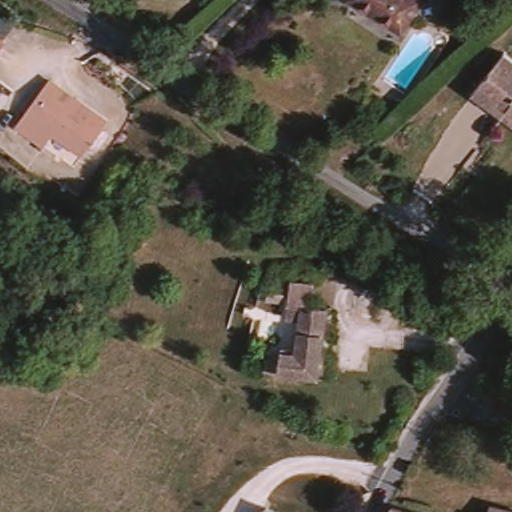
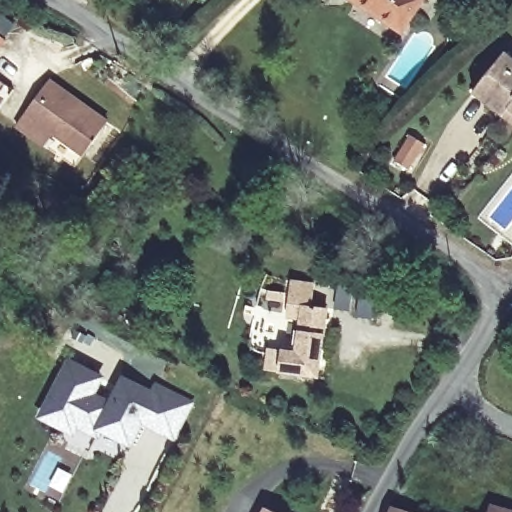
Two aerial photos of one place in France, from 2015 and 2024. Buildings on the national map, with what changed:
unchanged [(400,31),(353,0),(421,0),(400,31)]
unchanged [(7,41),(0,49),(0,35),(7,41)]
unchanged [(473,94),(504,54),(512,60),(512,124),(503,117),(473,94)]
unchanged [(82,157),(52,136),(44,148),(17,128),(28,114),(51,83),(81,106),(106,124),(82,157)]
unchanged [(326,310),(317,378),(279,373),(282,353),(297,355),(301,321),(287,318),(289,296),(291,283),(314,286),(313,298),(311,308),(326,310)]
new [(69,362),(99,377),(90,395),(110,405),(123,380),(153,394),(157,387),(189,403),(172,437),(140,420),(128,443),(99,428),(96,434),(75,423),(71,431),(42,416),(69,362)]
unchanged [(276,512),(262,512),(265,507),(276,512)]
unchanged [(495,512),(491,512),(491,511),(495,512)]

